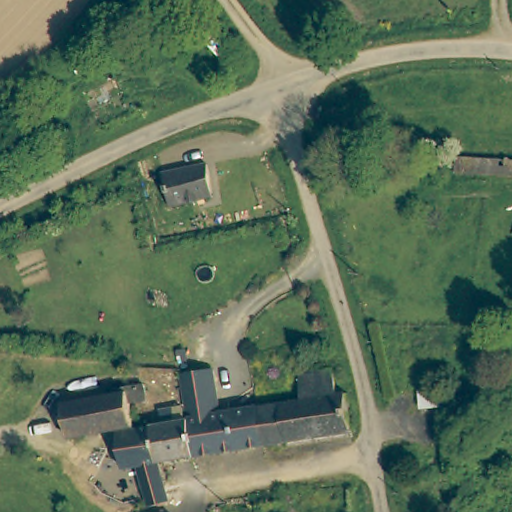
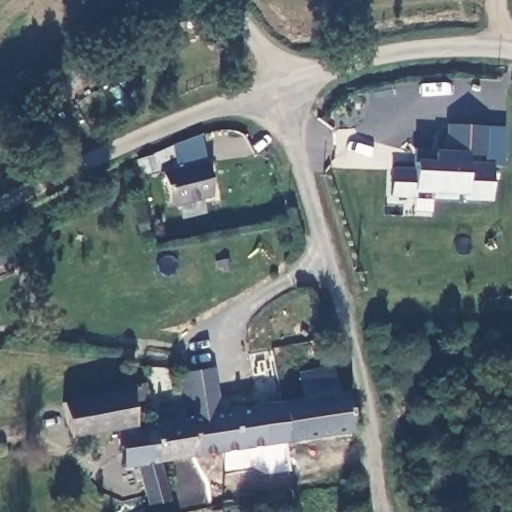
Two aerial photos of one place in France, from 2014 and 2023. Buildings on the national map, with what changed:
new [(412,167),(413,159),(412,149),(433,150),(446,150),(445,125),(488,126),(486,162),(494,162),(491,202),(457,201),(457,200),(433,199),(434,195),(416,194),(416,199),(392,197),(392,168),(412,167)]
demolished [(506,150),(504,167),(441,161),(442,145),(506,150)]
unchanged [(175,203),(168,171),(211,161),(219,194),(175,203)]
unchanged [(178,372),(184,371),(210,366),(218,413),(251,408),(260,448),(195,460),(187,417),(178,372)]
unchanged [(260,448),(251,408),(305,399),(300,372),(333,366),(338,393),(346,392),(356,431),(260,448)]
unchanged [(64,403),(129,394),(128,387),(132,386),(148,384),(150,400),(135,402),(138,426),(121,430),(70,437),(64,403)]
unchanged [(164,466),(156,424),(156,423),(187,417),(195,460),(164,466)]
unchanged [(153,510),(146,472),(145,465),(128,468),(121,430),(138,426),(156,424),(164,466),(164,468),(171,506),(153,510)]

